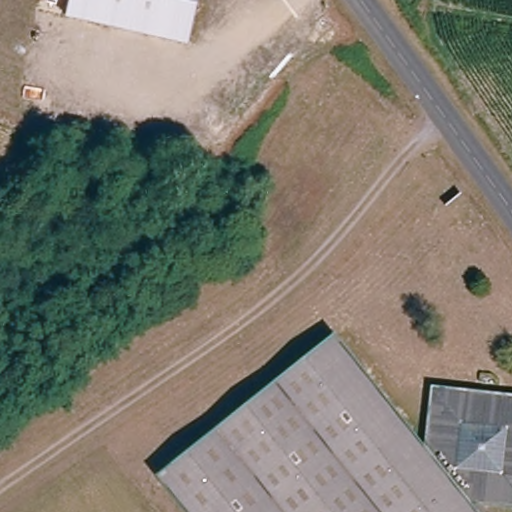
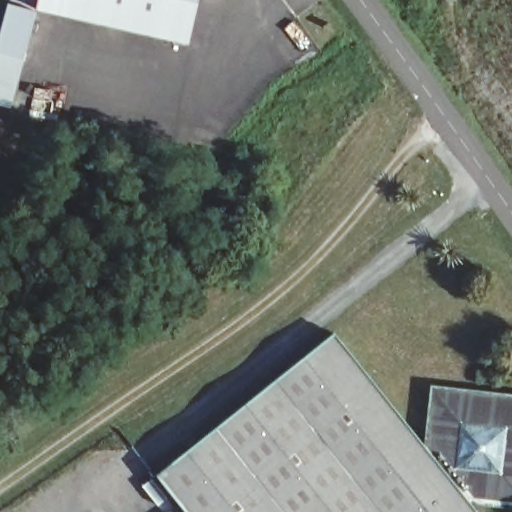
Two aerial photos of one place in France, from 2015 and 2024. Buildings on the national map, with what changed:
new [(36,10),(39,0),(71,0),(66,19),(36,10)]
unchanged [(189,48),(66,19),(71,0),(200,0),(189,48)]
new [(11,109),(0,106),(0,34),(8,3),(36,12),(11,109)]
unchanged [(512,508),(466,501),(475,512),(183,512),(156,477),(338,336),(427,455),(439,395),(512,406),(512,508)]

